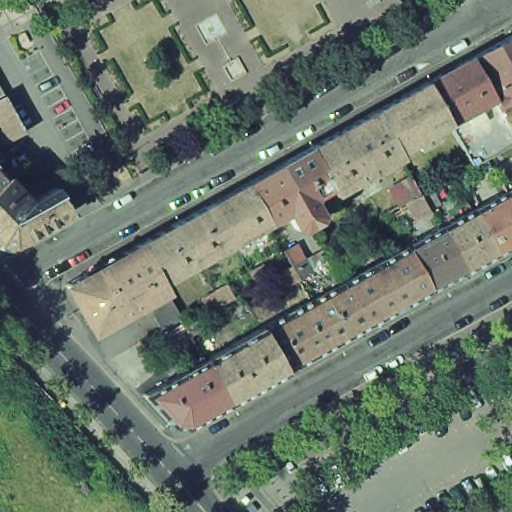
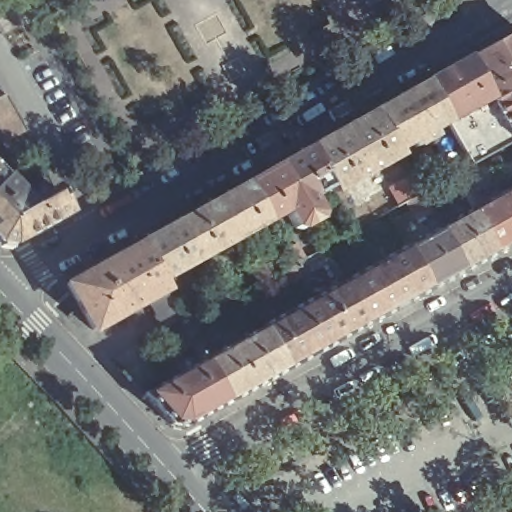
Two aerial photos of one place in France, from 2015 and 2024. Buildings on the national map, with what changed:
unchanged [(474,60),(470,53),(501,36),(512,30),(512,128),(474,60)]
unchanged [(470,53),(474,60),(512,128),(512,139),(487,152),(474,160),(472,158),(450,118),(449,118),(426,78),(470,53)]
unchanged [(426,78),(449,118),(433,127),(435,132),(417,143),(414,138),(399,146),(402,152),(401,152),(376,106),(426,78)]
unchanged [(0,79),(5,87),(5,89),(0,92),(0,79)]
unchanged [(0,92),(5,89),(27,126),(5,138),(0,130),(0,92)]
unchanged [(376,106),(401,152),(335,189),(310,143),(376,106)]
unchanged [(310,143),(335,189),(332,183),(314,193),(322,209),(320,215),(312,220),(279,161),(310,143)]
unchanged [(40,159),(46,171),(35,177),(29,166),(40,159)]
unchanged [(279,161),(312,220),(302,225),(296,223),(287,207),(270,217),(269,218),(247,179),(279,161)]
unchanged [(0,163),(9,171),(0,180),(0,163)]
unchanged [(14,239),(0,238),(0,180),(9,171),(9,172),(34,197),(42,190),(57,181),(72,207),(14,239)]
unchanged [(247,179),(269,218),(235,236),(214,197),(247,179)]
unchanged [(505,186),(512,182),(512,197),(505,186)]
unchanged [(498,248),(474,204),(505,186),(512,197),(512,241),(498,248)]
unchanged [(423,188),(432,206),(417,214),(412,203),(397,212),(394,205),(408,197),(423,188)]
unchanged [(214,197),(235,236),(200,257),(177,217),(214,197)]
unchanged [(465,266),(442,222),(474,204),(498,248),(465,266)]
unchanged [(177,217),(200,257),(164,276),(142,237),(177,217)]
unchanged [(432,284),(408,240),(442,222),(465,266),(432,284)]
unchanged [(164,324),(157,311),(158,310),(149,294),(94,324),(68,279),(142,237),(164,276),(167,283),(166,284),(182,314),(164,324)]
unchanged [(280,267),(293,260),(292,258),(285,246),(299,239),(306,253),(314,266),(300,273),(287,281),(280,267)]
unchanged [(368,320),(344,277),(408,240),(432,284),(368,320)]
unchanged [(265,258),(272,271),(260,279),(258,277),(252,266),(265,258)]
unchanged [(337,338),(312,294),(344,277),(368,320),(337,338)]
unchanged [(215,286),(229,279),(235,292),(223,299),(210,306),(203,293),(215,286)]
unchanged [(287,365),(264,322),(263,321),(312,294),(337,338),(287,365)]
unchanged [(192,331),(186,319),(200,311),(207,323),(192,331)]
unchanged [(230,397),(206,354),(264,322),(287,365),(230,397)]
unchanged [(187,421),(172,419),(145,389),(206,354),(230,397),(187,421)]

